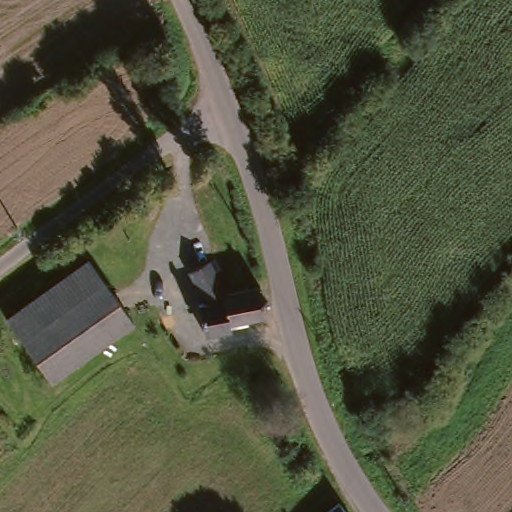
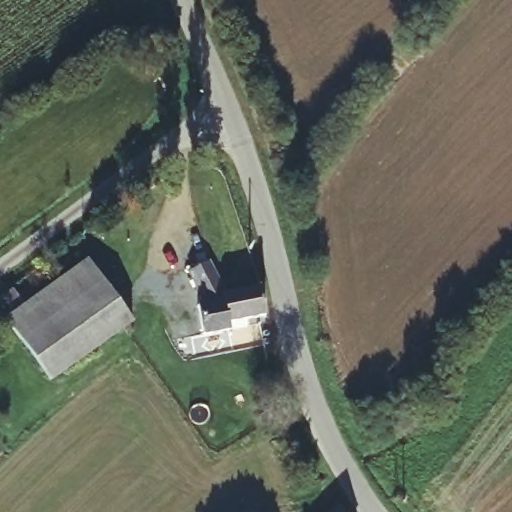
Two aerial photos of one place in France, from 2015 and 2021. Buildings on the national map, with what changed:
unchanged [(34,277),(78,243),(109,285),(114,291),(116,294),(140,328),(60,387),(0,305),(11,296),(26,284),(34,277)]
unchanged [(200,296),(207,294),(191,263),(208,253),(225,286),(258,281),(260,300),(260,308),(238,312),(239,319),(220,321),(207,323),(203,323),(203,318),(201,304),(200,296)]
unchanged [(334,505),(340,512),(326,512),(334,505)]

